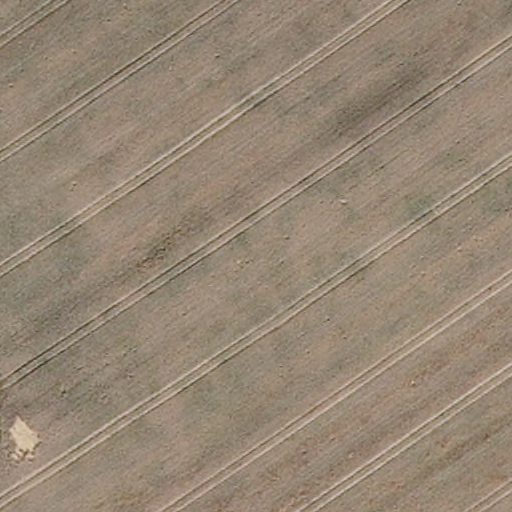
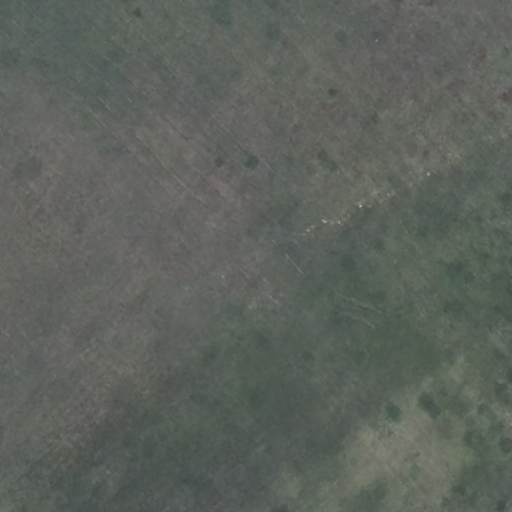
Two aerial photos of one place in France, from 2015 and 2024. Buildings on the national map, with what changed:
[]

